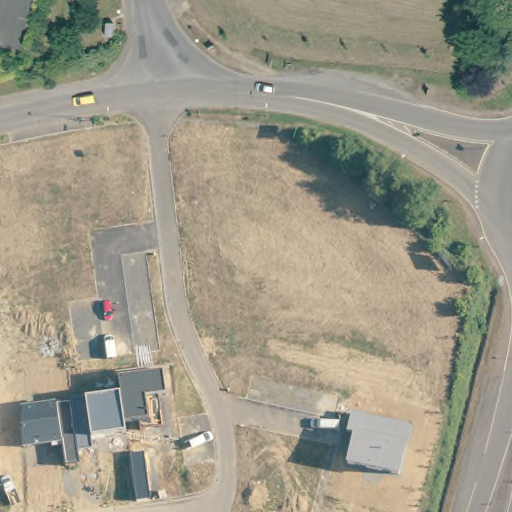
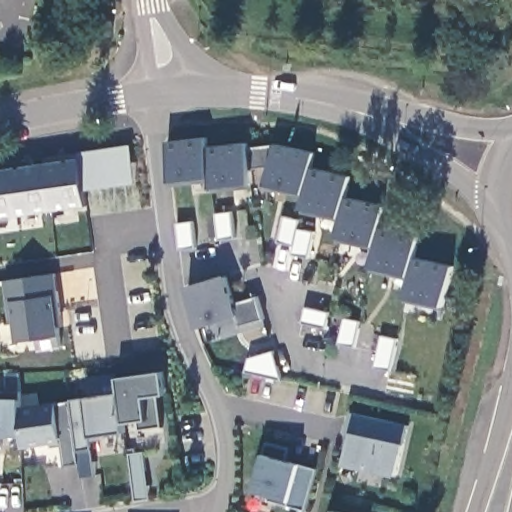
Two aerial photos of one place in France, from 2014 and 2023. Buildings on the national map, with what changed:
unchanged [(446,70),(455,79),(443,91),(435,82),(446,70)]
new [(167,141),(207,135),(209,147),(247,141),(249,149),(275,145),(316,152),(314,169),(352,175),(348,197),(386,205),(383,228),(420,235),(416,257),(455,265),(446,305),(407,296),(411,272),(372,265),(377,245),(338,235),(342,214),(304,207),(306,191),(267,184),(270,166),(252,169),(254,181),(212,187),(211,176),(171,182),(167,141)]
new [(138,183),(87,190),(89,207),(0,218),(0,169),(46,164),(44,155),(130,145),(138,183)]
new [(217,213),(235,211),(238,238),(220,240),(217,213)]
new [(281,244),(287,217),(304,220),(302,229),(319,232),(313,260),(296,256),(298,247),(281,244)]
new [(179,223),(195,221),(199,248),(181,250),(179,223)]
demolished [(5,296),(9,317),(0,318),(0,265),(5,296)]
new [(35,352),(34,341),(18,342),(15,320),(9,321),(5,281),(53,274),(61,336),(62,348),(35,352)]
new [(187,287),(226,276),(235,305),(257,298),(263,320),(240,325),(239,320),(220,325),(219,323),(200,329),(187,287)]
new [(330,330),(305,324),(309,307),(335,312),(330,330)]
new [(357,347),(342,345),(347,318),(363,321),(357,347)]
new [(385,336),(400,339),(393,371),(377,368),(385,336)]
new [(250,356),(275,349),(284,379),(246,371),(250,356)]
unchanged [(163,425),(142,428),(140,420),(126,422),(122,393),(120,376),(164,371),(167,393),(158,395),(163,425)]
unchanged [(73,400),(122,393),(126,422),(129,431),(87,437),(85,421),(78,421),(73,400)]
unchanged [(21,397),(20,435),(0,435),(0,397),(21,397)]
unchanged [(78,421),(81,463),(67,466),(65,442),(27,448),(24,405),(73,400),(78,421)]
unchanged [(402,474),(348,463),(355,431),(349,430),(353,411),(412,425),(408,443),(402,474)]
unchanged [(268,500),(271,495),(253,490),(264,451),(266,442),(290,448),(287,460),(301,465),(316,468),(306,510),(268,500)]
unchanged [(151,499),(137,501),(130,454),(145,452),(151,499)]
new [(333,510),(339,512),(333,512),(333,510)]

